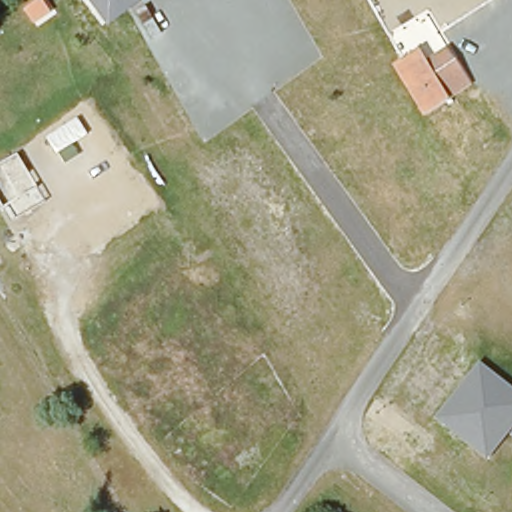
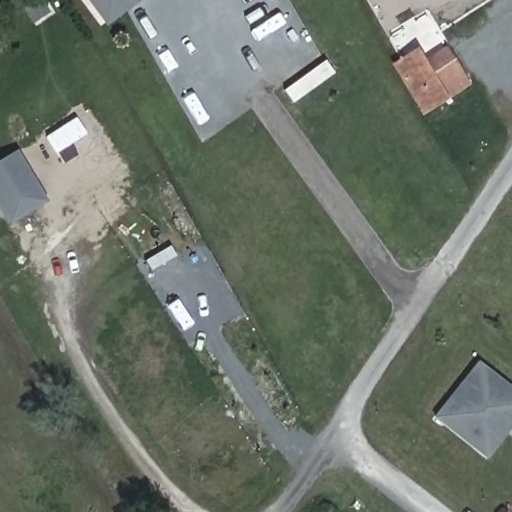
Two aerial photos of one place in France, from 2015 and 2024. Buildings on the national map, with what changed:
unchanged [(20,8),(32,0),(49,0),(55,10),(32,27),(20,8)]
new [(90,0),(141,0),(107,25),(90,0)]
unchanged [(420,60),(442,46),(465,80),(442,94),(443,96),(420,110),(388,61),(411,46),(420,60)]
unchanged [(71,118),(81,134),(53,150),(43,135),(71,118)]
new [(0,209),(0,161),(19,150),(49,201),(10,225),(0,209)]
unchanged [(488,459),(435,417),(480,359),(512,386),(512,428),(488,459)]

